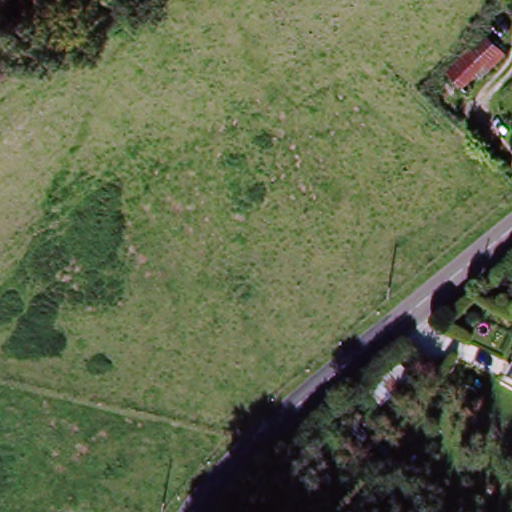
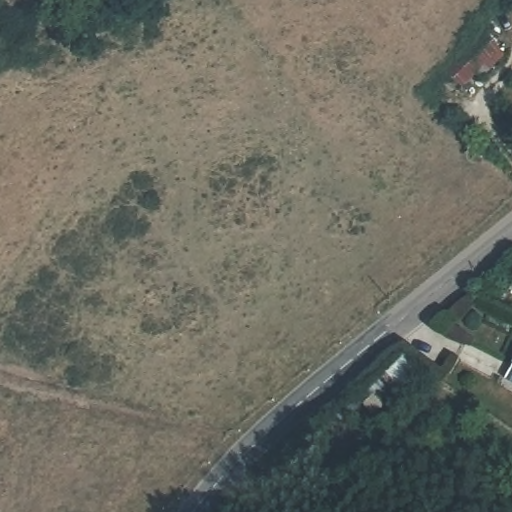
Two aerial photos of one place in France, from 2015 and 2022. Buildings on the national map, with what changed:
unchanged [(475,95),(457,85),(489,32),(505,43),(475,95)]

